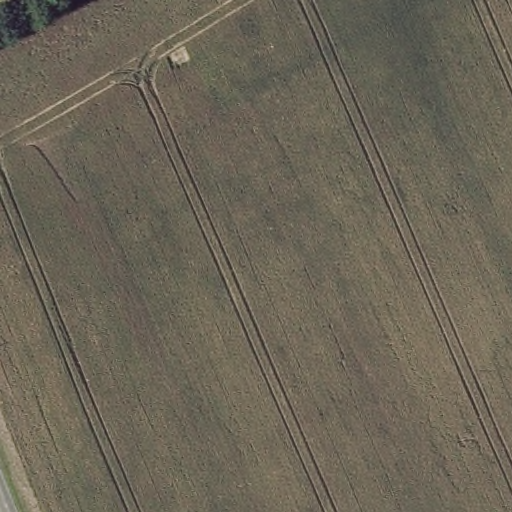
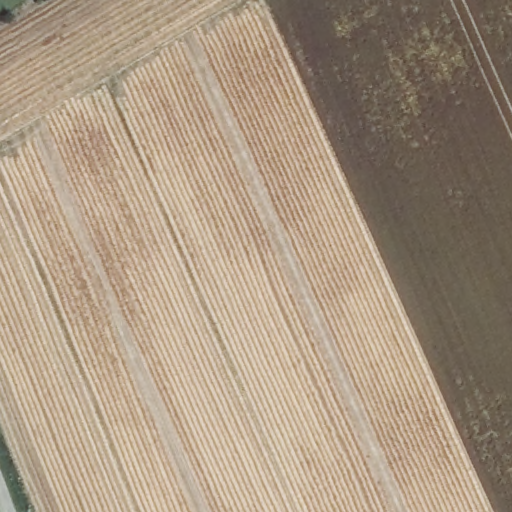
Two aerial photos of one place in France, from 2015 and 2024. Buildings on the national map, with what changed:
[]

